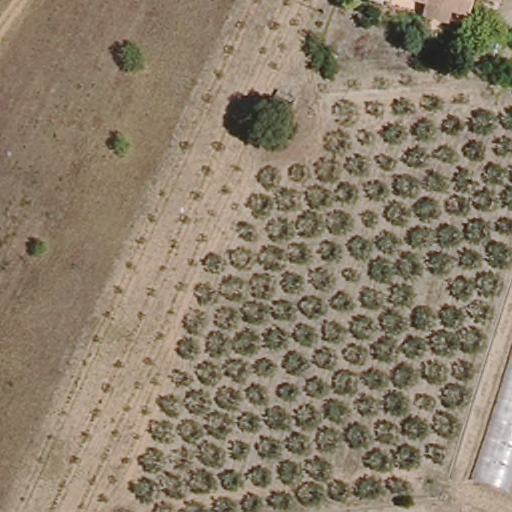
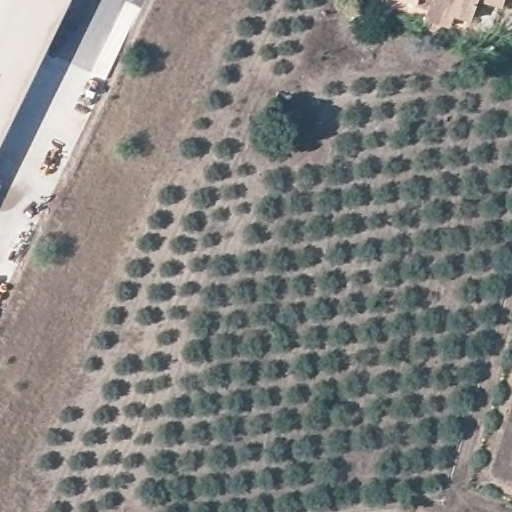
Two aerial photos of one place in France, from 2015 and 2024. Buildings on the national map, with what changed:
new [(0,136),(0,0),(66,0),(1,135),(0,136)]
unchanged [(412,0),(470,0),(465,17),(412,0)]
unchanged [(486,0),(496,0),(495,3),(486,0)]
demolished [(465,482),(512,334),(512,496),(465,482)]

